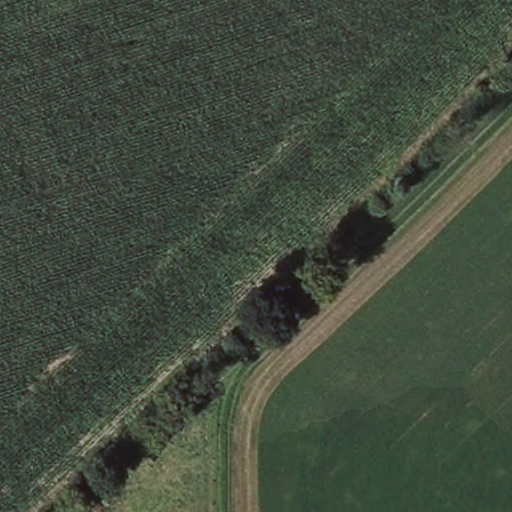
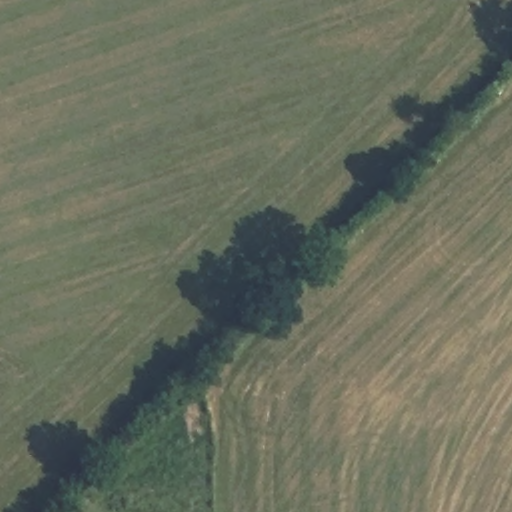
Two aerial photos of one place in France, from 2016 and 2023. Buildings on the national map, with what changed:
[]

